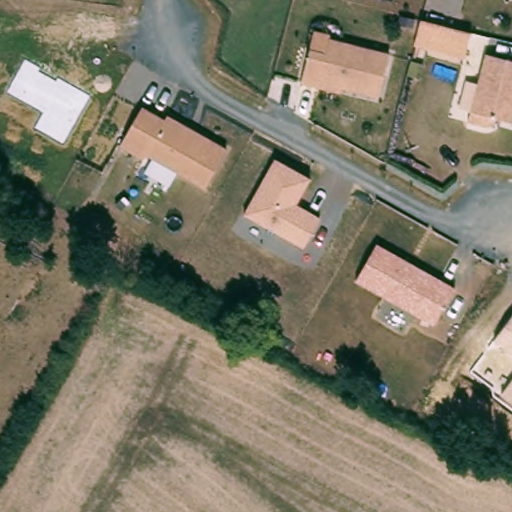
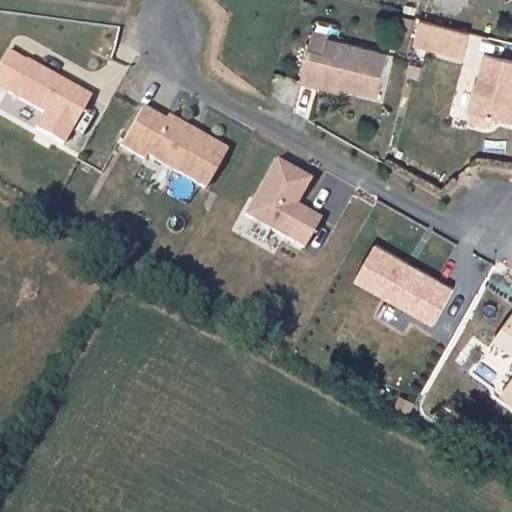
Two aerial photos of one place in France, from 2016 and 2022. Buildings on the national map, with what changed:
unchanged [(421,20),(472,34),(464,59),(414,46),(421,20)]
unchanged [(330,33),(330,37),(388,52),(378,96),(344,88),(343,93),(299,82),(311,29),(330,33)]
unchanged [(512,60),(512,123),(497,118),(494,123),(492,126),(487,127),(466,122),(483,52),(512,60)]
new [(0,62),(5,53),(23,63),(23,62),(38,70),(56,80),(89,99),(61,146),(33,130),(41,115),(5,94),(5,93),(0,91),(0,62)]
unchanged [(163,118),(166,113),(226,147),(204,188),(145,155),(142,159),(118,145),(141,104),(163,118)]
unchanged [(310,177),(295,203),(319,217),(303,247),(242,213),(273,158),(310,177)]
unchanged [(454,285),(433,325),(354,281),(376,242),(454,285)]
unchanged [(493,341),(512,317),(512,355),(493,341)]
unchanged [(503,394),(512,381),(512,402),(503,394)]

